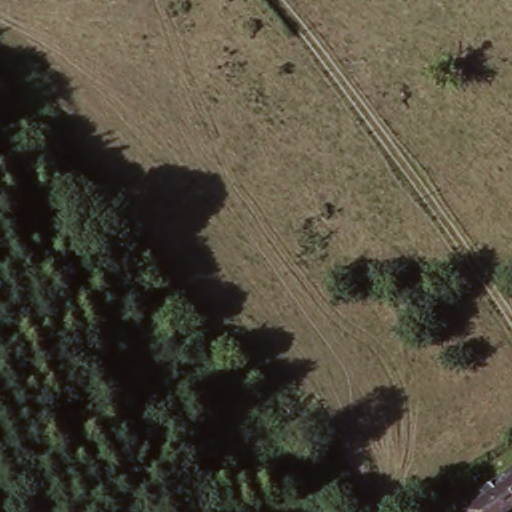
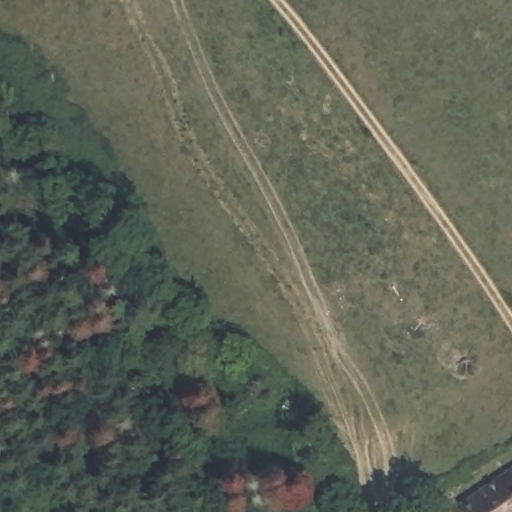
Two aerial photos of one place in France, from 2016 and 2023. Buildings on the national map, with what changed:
unchanged [(512,473),(512,511),(510,512),(458,512),(455,508),(510,471),(512,473)]

